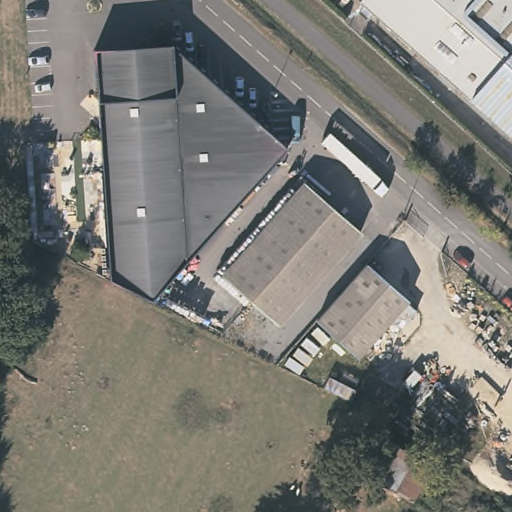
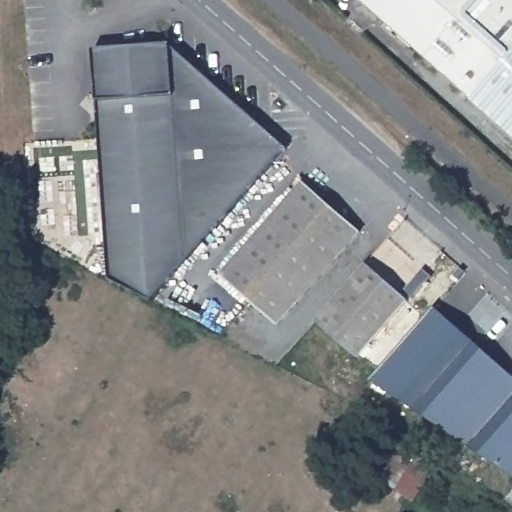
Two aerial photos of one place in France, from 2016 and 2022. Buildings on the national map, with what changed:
unchanged [(512,135),(366,5),(370,0),(510,0),(512,2),(512,135)]
unchanged [(160,43),(170,51),(182,220),(103,229),(84,51),(160,43)]
unchanged [(182,220),(170,51),(281,141),(164,287),(153,301),(109,282),(103,229),(182,220)]
unchanged [(353,232),(275,321),(223,275),(302,186),(353,232)]
unchanged [(406,297),(356,355),(316,322),(366,263),(406,297)]
new [(512,474),(401,401),(374,379),(438,307),(512,374),(512,474)]
unchanged [(440,475),(420,509),(359,472),(378,439),(440,475)]

